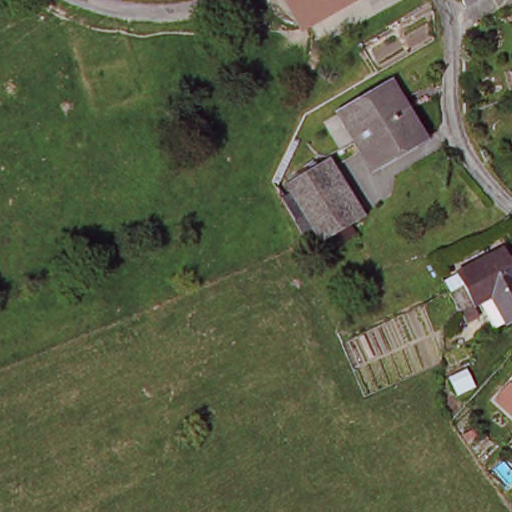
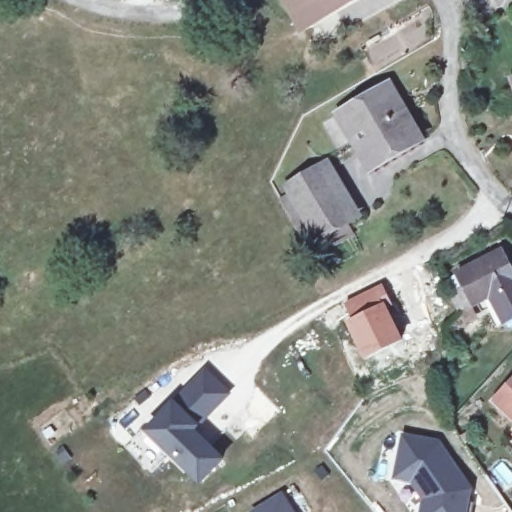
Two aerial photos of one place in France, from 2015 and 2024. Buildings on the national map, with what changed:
unchanged [(314,22),(294,33),(275,0),(302,0),(314,22)]
unchanged [(314,22),(302,0),(355,0),(314,22)]
unchanged [(512,84),(512,97),(508,88),(512,84)]
unchanged [(414,142),(378,164),(349,115),(386,93),(414,142)]
unchanged [(350,217),(314,240),(288,191),(325,168),(350,217)]
unchanged [(487,309),(481,300),(458,313),(451,300),(467,290),(456,272),(502,245),(512,262),(512,318),(510,319),(502,325),(491,306),(487,309)]
new [(383,281),(393,303),(390,305),(404,341),(364,360),(345,321),(349,319),(341,302),(383,281)]
new [(213,378),(236,400),(199,438),(229,466),(208,489),(155,438),(213,378)]
unchanged [(512,378),(512,419),(491,399),(512,378)]
new [(431,451),(438,461),(444,457),(465,487),(460,512),(419,512),(422,496),(409,478),(393,475),(399,435),(433,441),(431,451)]
new [(288,512),(251,512),(277,495),(288,512)]

